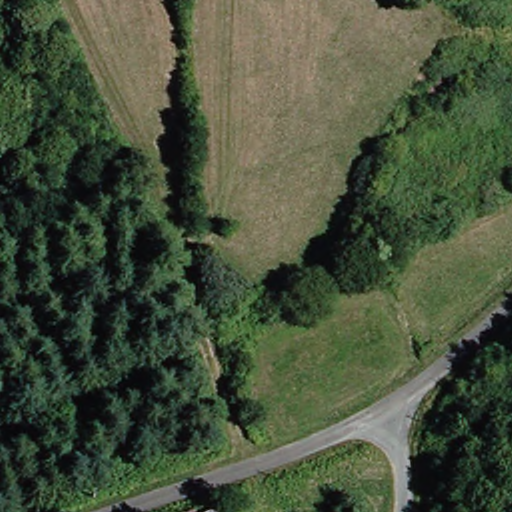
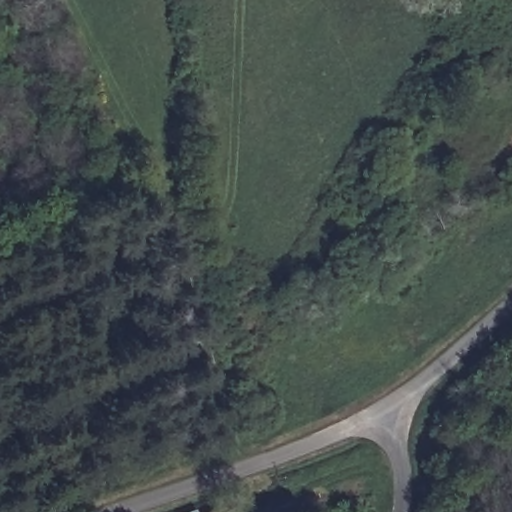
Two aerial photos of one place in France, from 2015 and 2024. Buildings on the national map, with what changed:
unchanged [(193,512),(173,512),(191,507),(193,512)]
unchanged [(237,512),(216,512),(236,508),(237,512)]
unchanged [(213,512),(200,512),(212,509),(213,512)]

